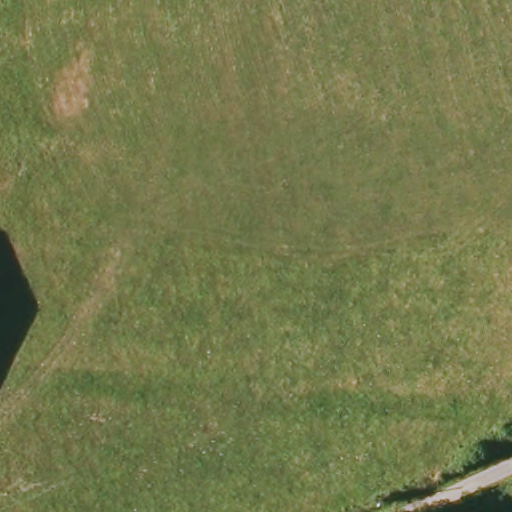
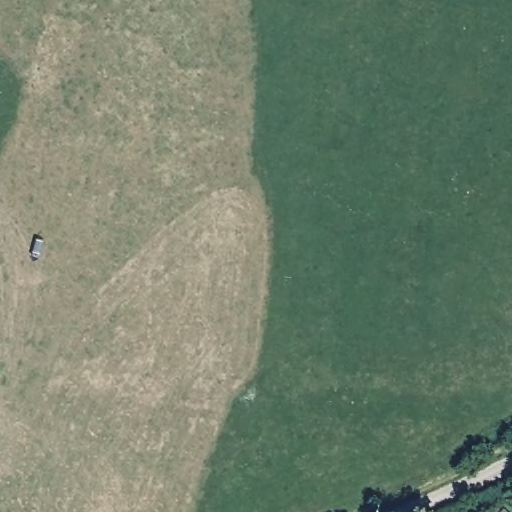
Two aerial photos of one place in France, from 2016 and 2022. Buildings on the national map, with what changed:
unchanged [(506,512),(503,512),(504,510),(506,512)]

